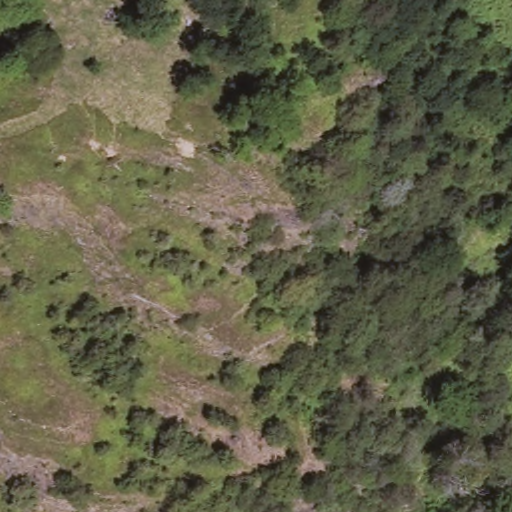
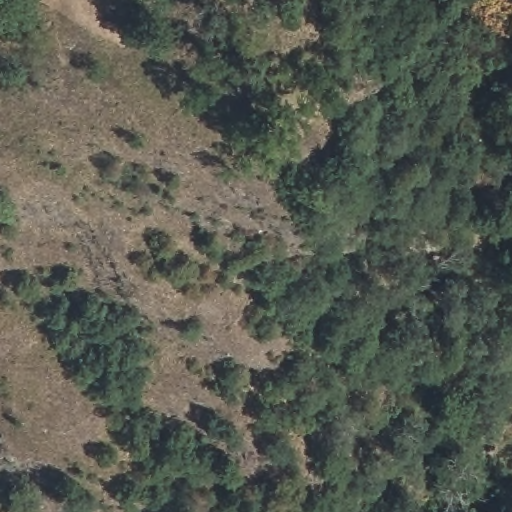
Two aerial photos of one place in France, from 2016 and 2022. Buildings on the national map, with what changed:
[]

